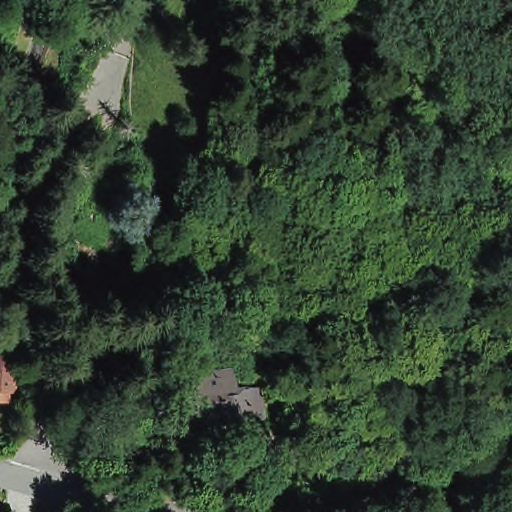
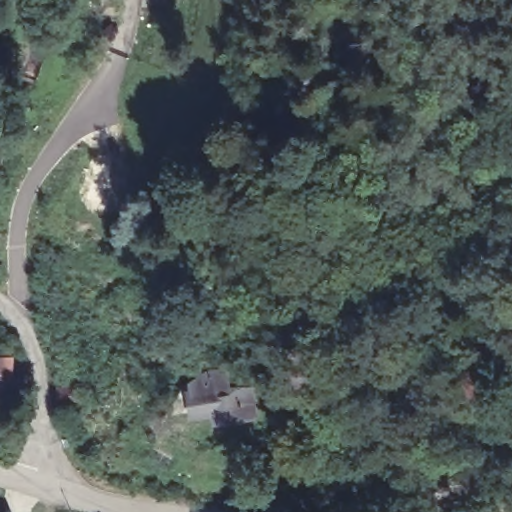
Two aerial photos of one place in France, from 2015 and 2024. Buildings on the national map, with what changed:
unchanged [(0,360),(9,361),(6,392),(0,392),(0,360)]
unchanged [(191,388),(192,392),(217,390),(217,392),(232,391),(235,420),(194,425),(192,415),(183,416),(180,389),(191,388)]
unchanged [(63,421),(61,393),(86,391),(87,418),(63,421)]

